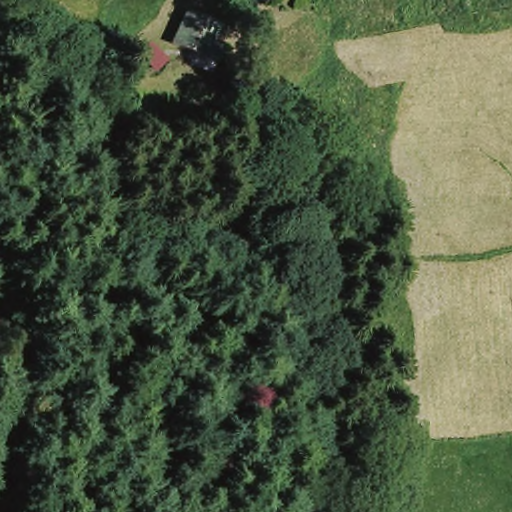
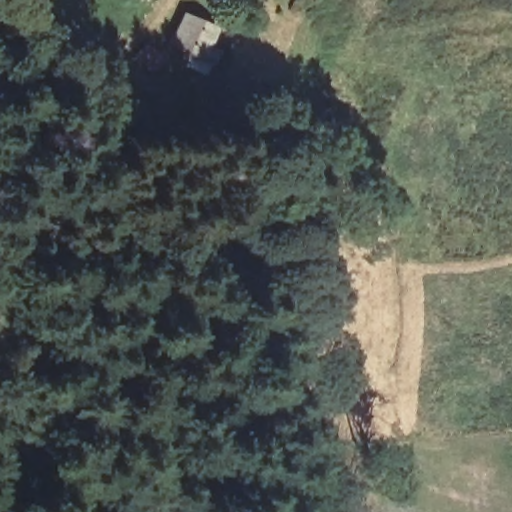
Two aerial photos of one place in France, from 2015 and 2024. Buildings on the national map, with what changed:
unchanged [(192,59),(163,38),(186,12),(216,32),(192,59)]

